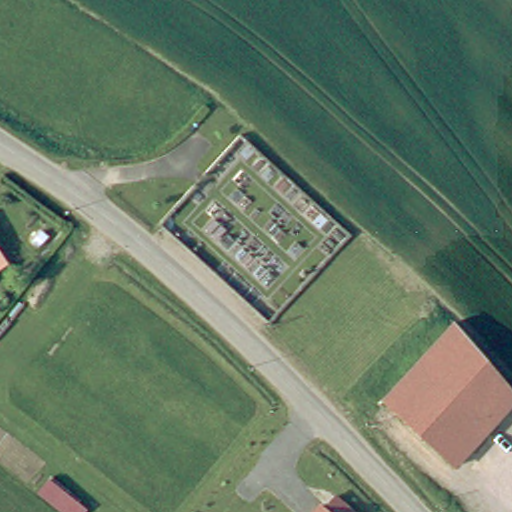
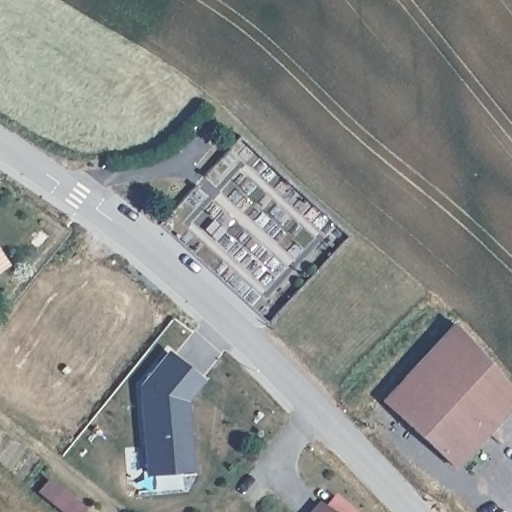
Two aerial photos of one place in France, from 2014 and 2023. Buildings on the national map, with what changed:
unchanged [(512,408),(458,470),(378,400),(452,320),(512,388),(512,408)]
new [(187,400),(195,469),(146,475),(136,385),(167,349),(203,379),(187,400)]
unchanged [(330,512),(308,512),(317,502),(330,512)]

